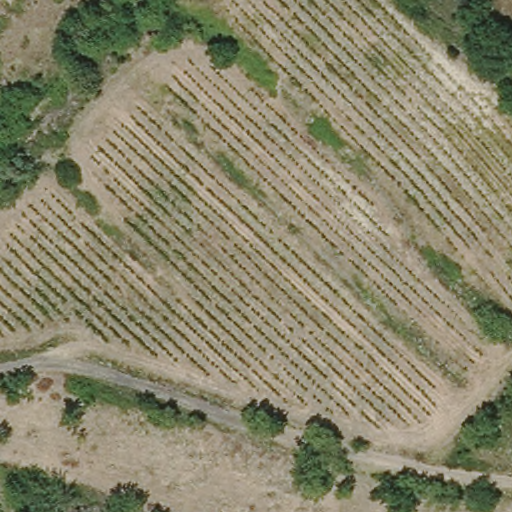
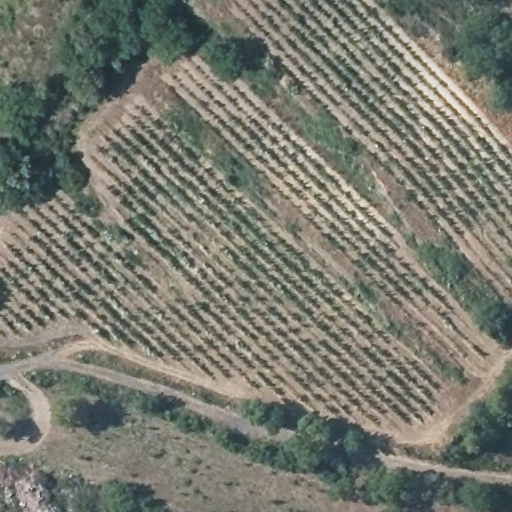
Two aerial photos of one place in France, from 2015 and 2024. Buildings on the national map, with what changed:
unchanged [(160,11),(167,32),(145,40),(140,16),(160,11)]

